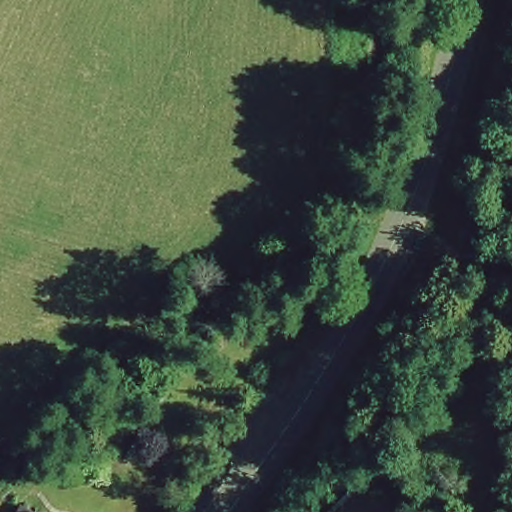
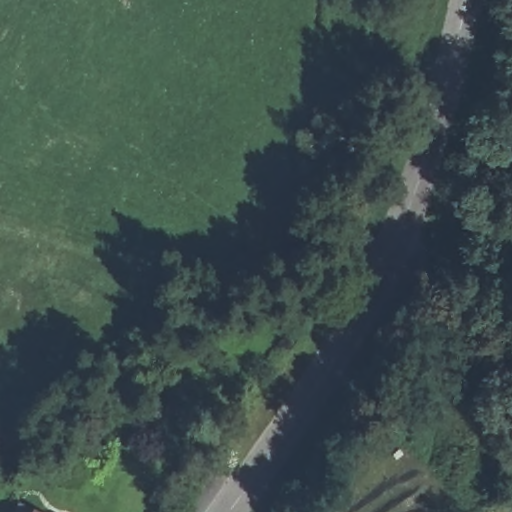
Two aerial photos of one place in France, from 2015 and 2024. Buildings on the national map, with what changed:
unchanged [(27,512),(17,512),(20,507),(27,512)]

